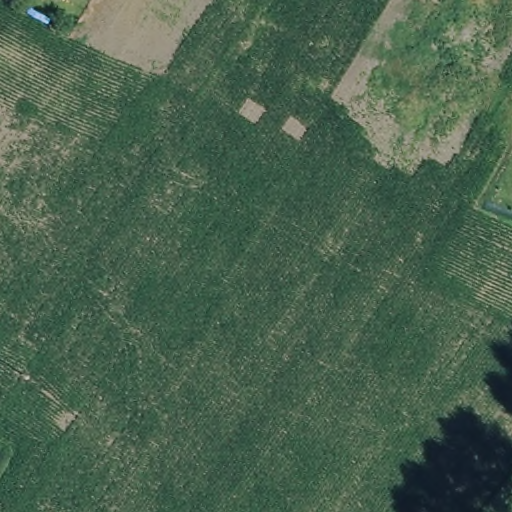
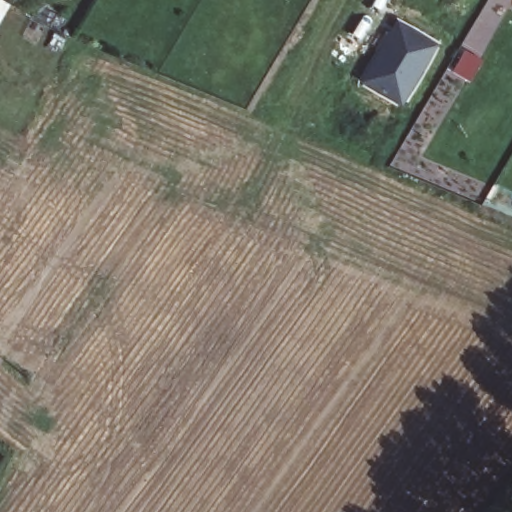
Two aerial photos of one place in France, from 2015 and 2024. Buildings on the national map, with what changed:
new [(359,80),(395,20),(438,46),(403,107),(359,80)]

